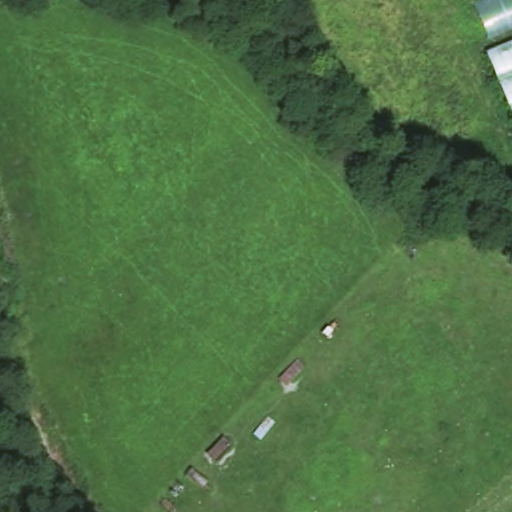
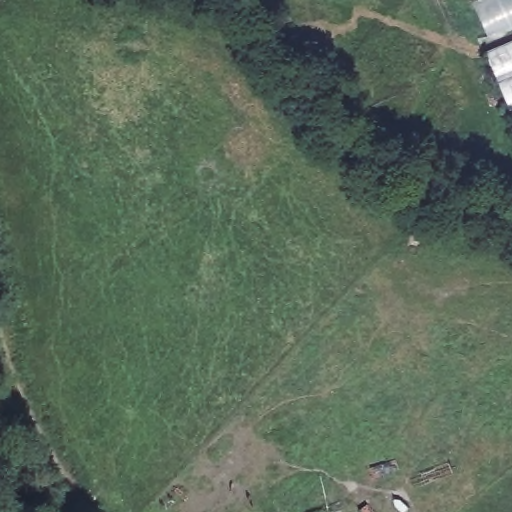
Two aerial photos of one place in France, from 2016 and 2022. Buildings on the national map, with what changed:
unchanged [(512,0),(512,109),(487,53),(494,48),(475,4),(484,0),(512,0)]

